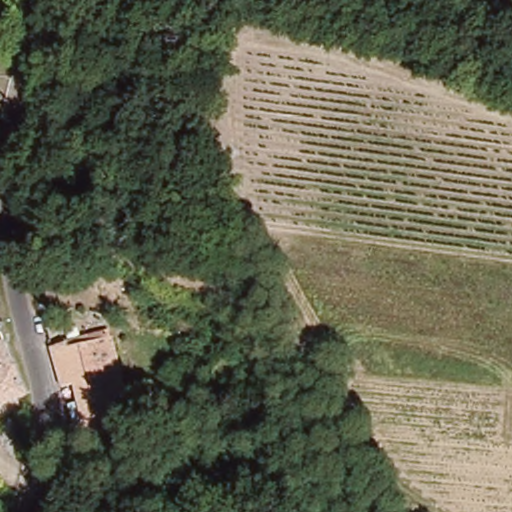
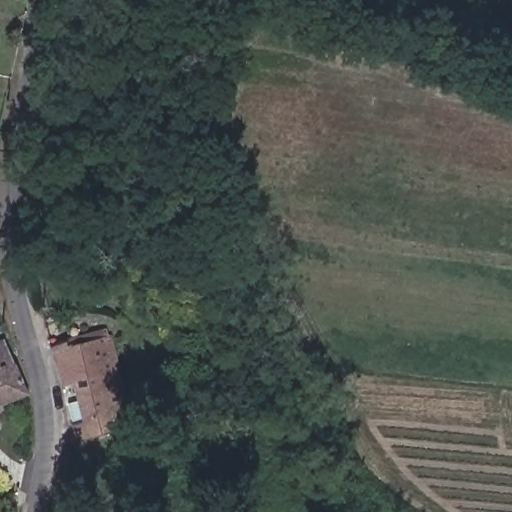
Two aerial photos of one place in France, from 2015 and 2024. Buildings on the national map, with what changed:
unchanged [(72,326),(79,346),(105,339),(114,374),(133,369),(138,388),(124,392),(129,411),(85,422),(80,403),(96,397),(88,372),(65,380),(50,332),(72,326)]
unchanged [(2,341),(22,397),(0,404),(0,342),(2,341)]

